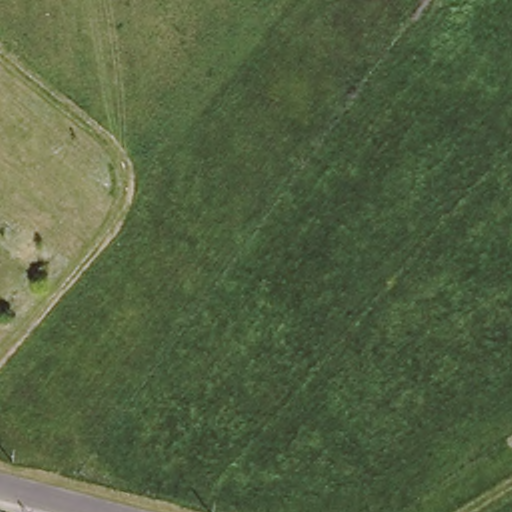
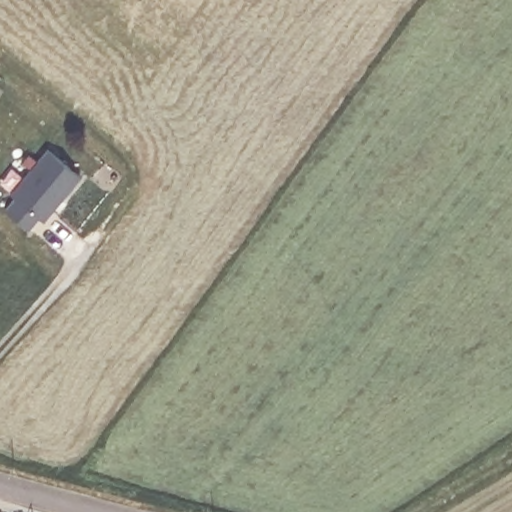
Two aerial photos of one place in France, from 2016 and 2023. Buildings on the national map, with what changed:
new [(13,197),(10,194),(47,149),(80,175),(43,221),(39,218),(30,231),(3,209),(13,197)]

